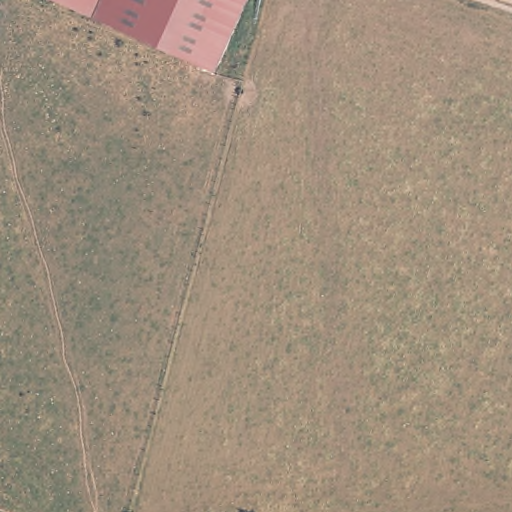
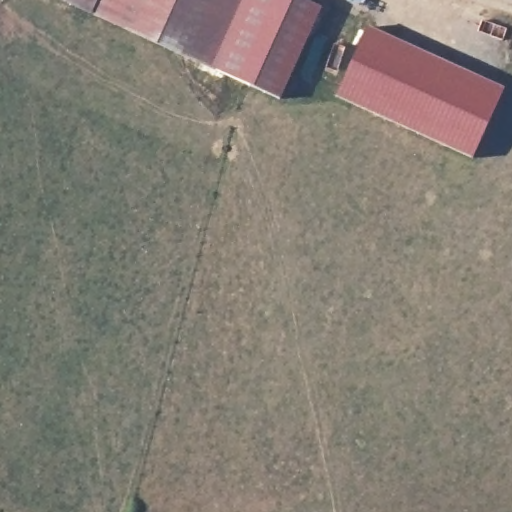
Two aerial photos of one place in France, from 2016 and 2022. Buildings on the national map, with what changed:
unchanged [(167,45),(67,0),(227,0),(200,60),(167,45)]
new [(306,0),(321,8),(279,97),(200,60),(227,0),(306,0)]
new [(472,159),(337,97),(369,27),(505,90),(472,159)]

